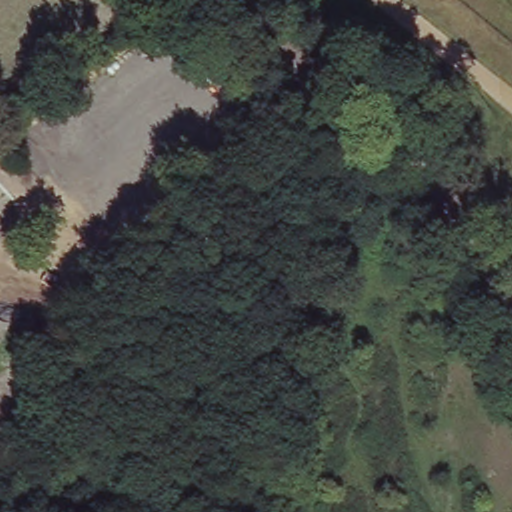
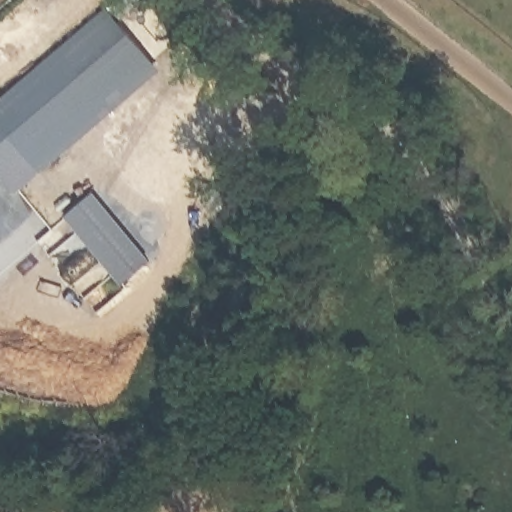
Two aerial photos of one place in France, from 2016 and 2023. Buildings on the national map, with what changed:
new [(110,6),(162,67),(45,166),(0,109),(0,97),(110,6)]

